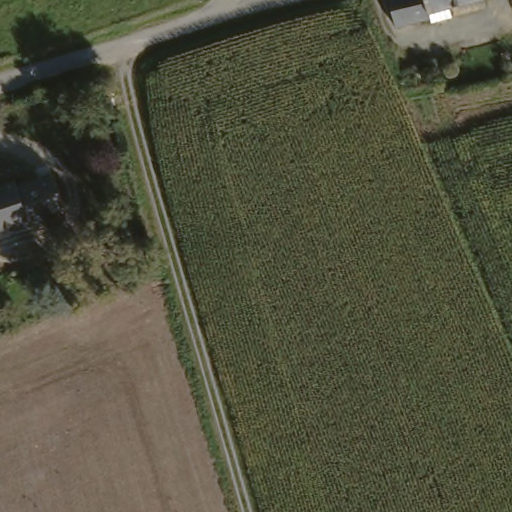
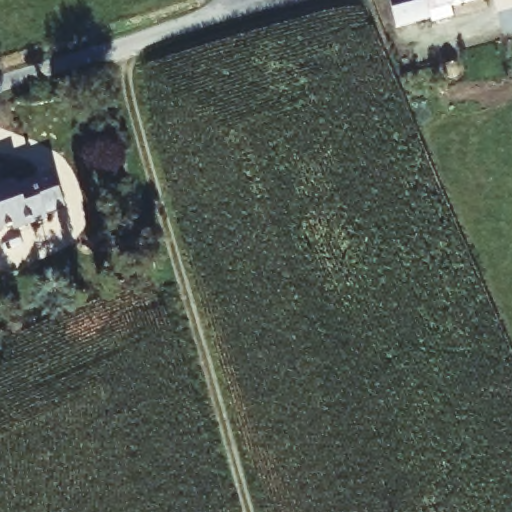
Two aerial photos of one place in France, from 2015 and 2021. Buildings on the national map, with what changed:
unchanged [(433,12),(436,20),(397,31),(389,0),(479,0),(433,12)]
unchanged [(18,182),(21,187),(54,175),(65,209),(46,215),(48,220),(16,231),(14,226),(0,231),(0,188),(18,182)]

